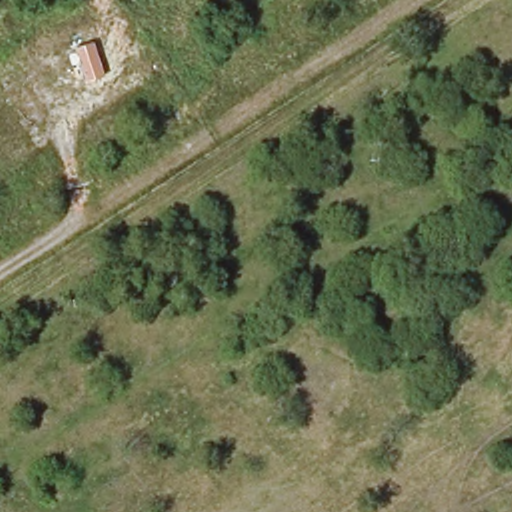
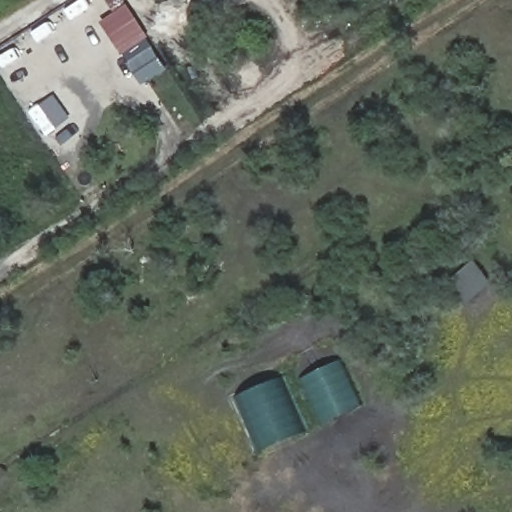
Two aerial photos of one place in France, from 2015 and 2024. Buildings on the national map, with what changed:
new [(101,23),(115,13),(107,0),(108,0),(123,0),(168,67),(143,85),(101,23)]
new [(340,361),(358,406),(320,423),(300,380),(340,361)]
new [(280,378),(302,436),(255,453),(230,397),(280,378)]

